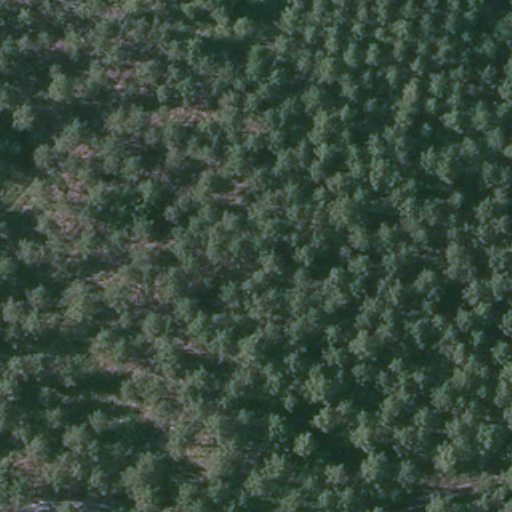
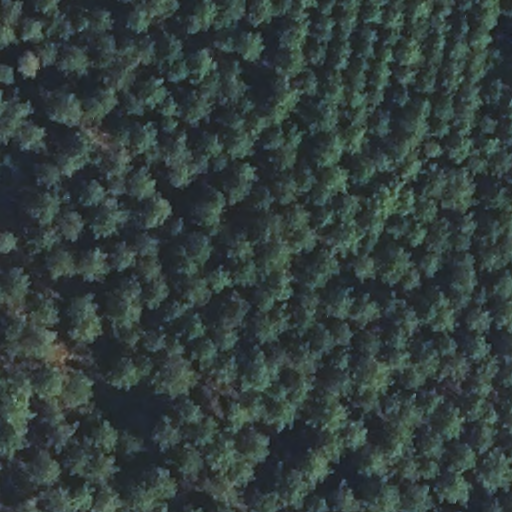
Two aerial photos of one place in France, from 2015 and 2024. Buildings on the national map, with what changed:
[]

